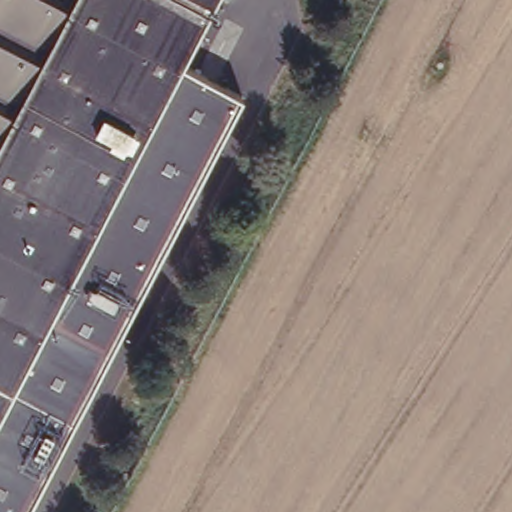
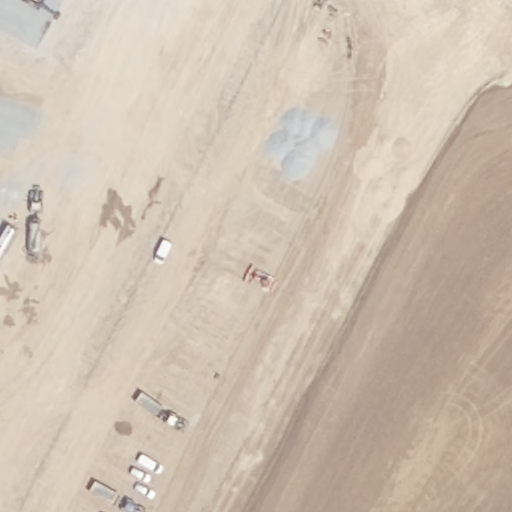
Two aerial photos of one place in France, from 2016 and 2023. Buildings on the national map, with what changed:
new [(35,43),(0,26),(0,0),(57,0),(35,43)]
demolished [(236,102),(25,512),(0,512),(0,0),(43,0),(181,71),(236,102)]
demolished [(181,71),(43,0),(214,0),(181,71)]

